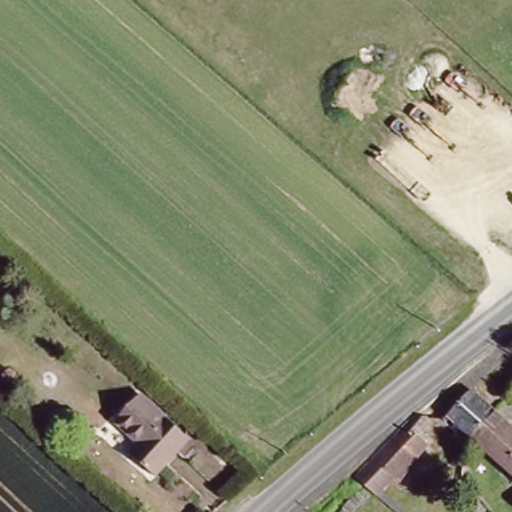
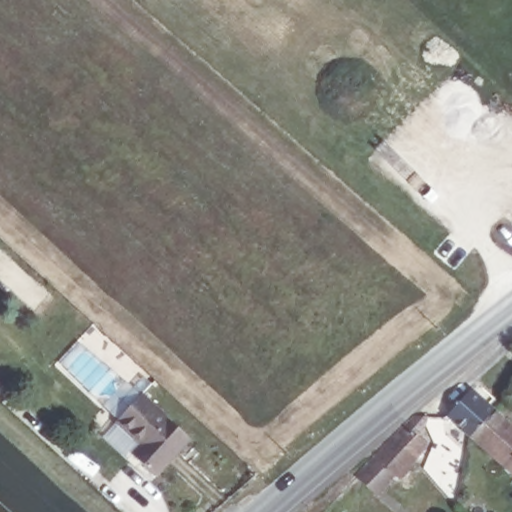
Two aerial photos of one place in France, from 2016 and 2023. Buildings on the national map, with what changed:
unchanged [(472,386),(493,405),(470,432),(448,412),(472,386)]
unchanged [(141,461),(156,446),(119,413),(138,393),(191,441),(157,476),(141,461)]
unchanged [(512,423),(512,471),(470,432),(493,405),(512,423)]
unchanged [(422,408),(427,413),(422,431),(435,443),(420,459),(402,477),(397,471),(376,495),(364,485),(354,495),(338,492),(395,434),(422,408)]

